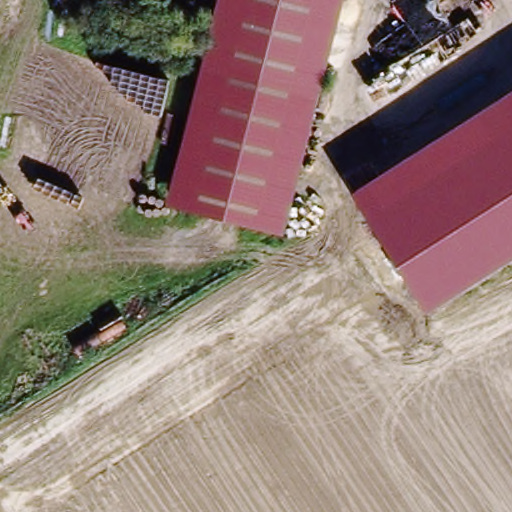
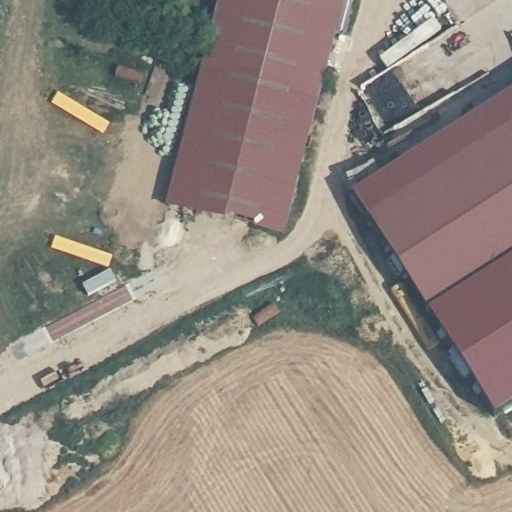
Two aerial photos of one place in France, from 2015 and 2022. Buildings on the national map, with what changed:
unchanged [(220,0),(343,0),(283,236),(167,202),(220,0)]
unchanged [(512,257),(424,314),(355,193),(512,94),(512,257)]
new [(424,314),(512,257),(512,408),(493,419),(424,314)]

